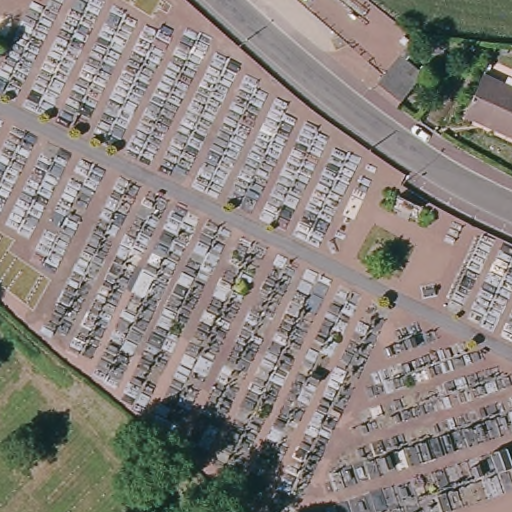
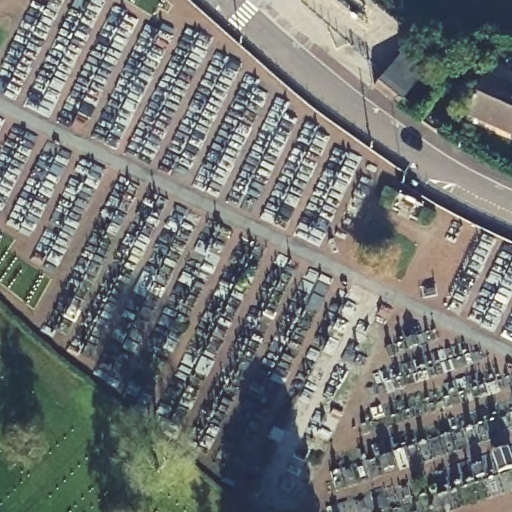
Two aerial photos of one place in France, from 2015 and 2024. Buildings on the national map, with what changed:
unchanged [(407,70),(418,80),(399,103),(387,94),(377,85),(395,61),(407,70)]
unchanged [(490,122),(467,111),(482,76),(512,90),(512,138),(487,126),(490,122)]

